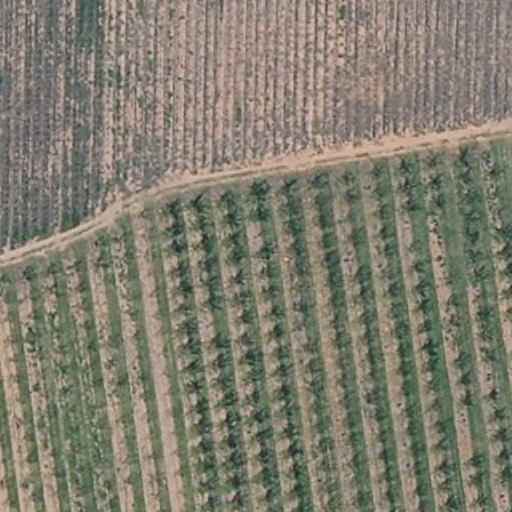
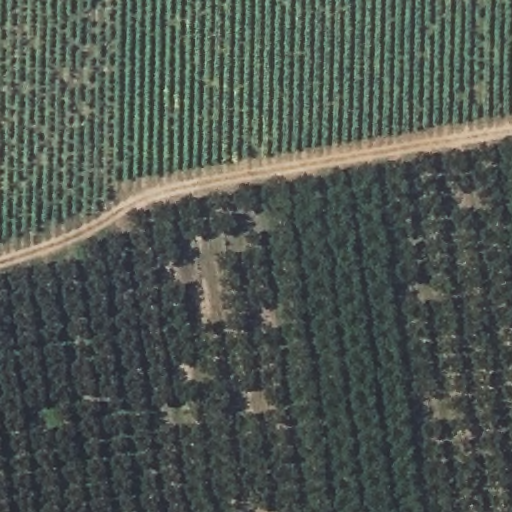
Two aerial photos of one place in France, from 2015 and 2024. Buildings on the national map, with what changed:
unchanged [(66,308),(46,312),(42,293),(61,289),(66,308)]

